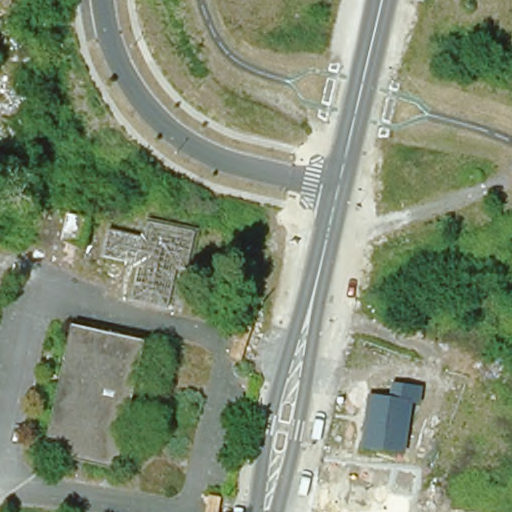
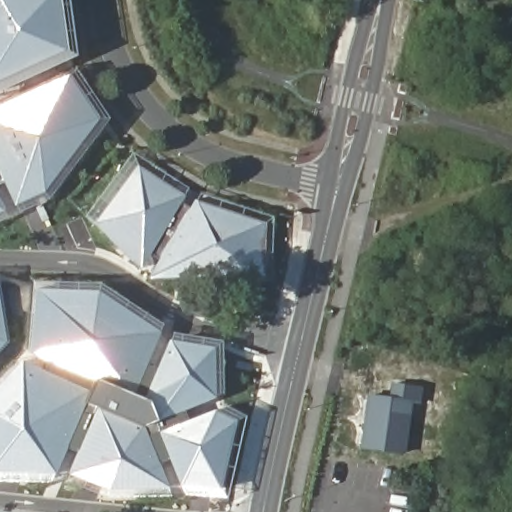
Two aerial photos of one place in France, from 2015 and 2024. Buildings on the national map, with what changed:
new [(0,93),(0,0),(72,0),(82,56),(0,93)]
new [(109,119),(42,203),(16,204),(9,188),(0,192),(0,106),(77,73),(109,119)]
new [(189,195),(182,205),(195,210),(200,202),(271,224),(267,274),(151,279),(162,260),(154,257),(145,270),(89,216),(134,155),(189,195)]
new [(6,210),(0,217),(0,194),(6,210)]
demolished [(86,219),(79,243),(62,239),(66,214),(86,219)]
demolished [(136,259),(125,256),(123,264),(100,259),(107,227),(142,236),(144,226),(192,237),(184,275),(175,274),(164,313),(125,303),(136,259)]
new [(11,340),(0,351),(0,284),(2,284),(11,340)]
new [(106,293),(162,334),(152,367),(160,372),(174,342),(218,351),(218,399),(189,408),(191,419),(221,413),(244,424),(226,491),(117,492),(80,473),(84,454),(69,449),(59,473),(0,473),(0,389),(29,364),(49,374),(54,358),(37,349),(36,293),(106,293)]
demolished [(139,346),(131,382),(121,379),(107,439),(118,440),(111,470),(47,456),(67,367),(61,366),(70,330),(139,346)]
unchanged [(419,389),(417,404),(411,403),(402,456),(361,451),(367,397),(386,399),(389,386),(419,389)]

